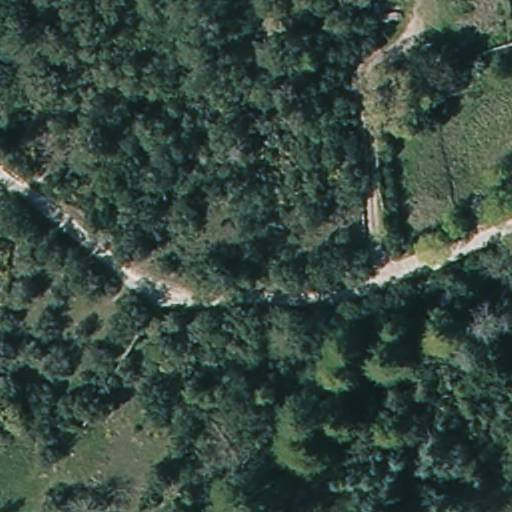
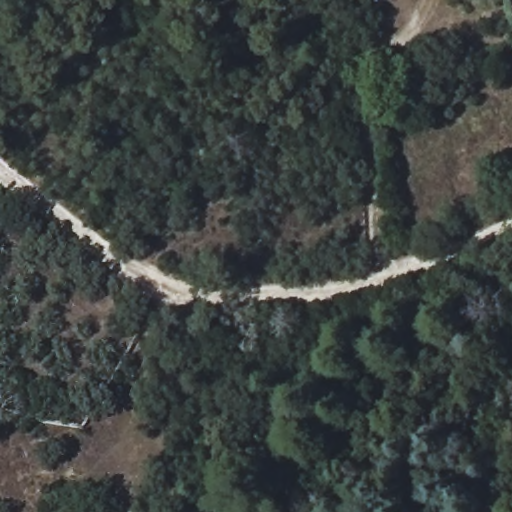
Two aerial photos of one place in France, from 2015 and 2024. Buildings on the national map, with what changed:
unchanged [(428,379),(409,383),(404,364),(424,360),(428,379)]

